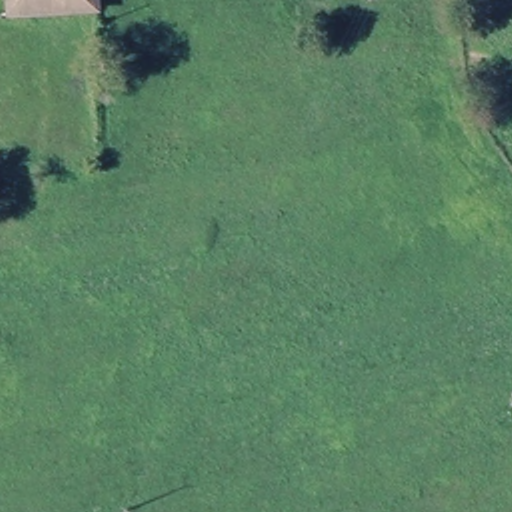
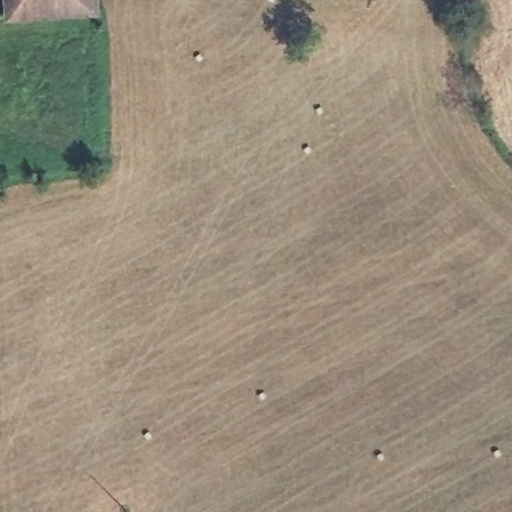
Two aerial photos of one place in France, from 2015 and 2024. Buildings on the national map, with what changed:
unchanged [(11,15),(11,0),(97,0),(97,11),(11,15)]

